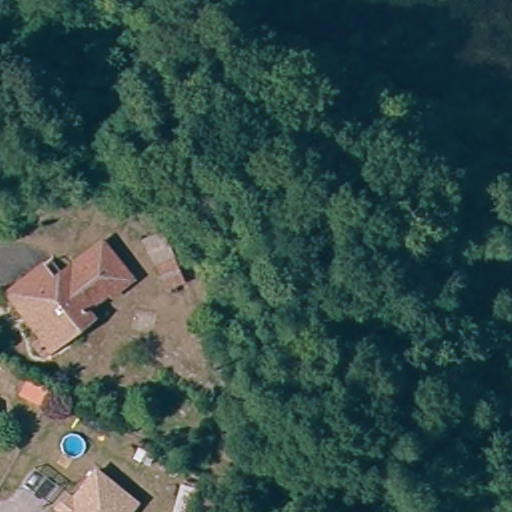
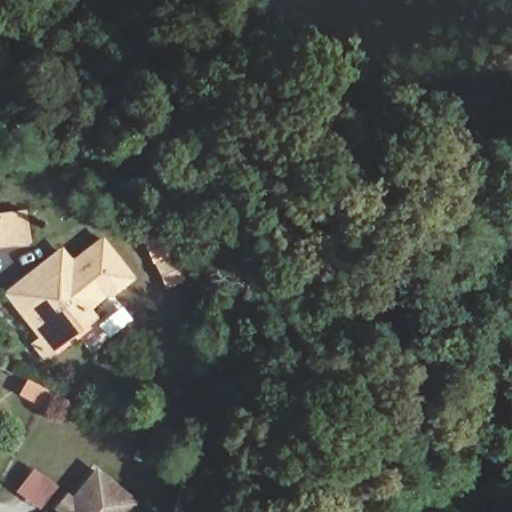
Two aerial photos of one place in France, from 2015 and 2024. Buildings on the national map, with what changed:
new [(26,209),(30,243),(0,246),(0,212),(26,209)]
unchanged [(169,282),(157,257),(155,257),(145,236),(163,227),(173,249),(172,249),(184,276),(169,282)]
unchanged [(38,345),(45,339),(11,294),(44,268),(54,282),(59,278),(77,264),(103,243),(132,278),(113,294),(111,291),(99,300),(87,310),(94,317),(65,340),(46,356),(38,345)]
unchanged [(59,504),(69,492),(74,496),(98,467),(137,499),(127,512),(61,512),(64,508),(59,504)]
unchanged [(191,512),(177,508),(185,482),(198,486),(191,512)]

